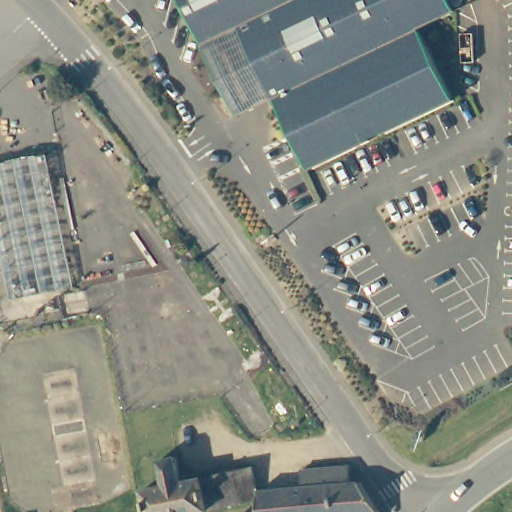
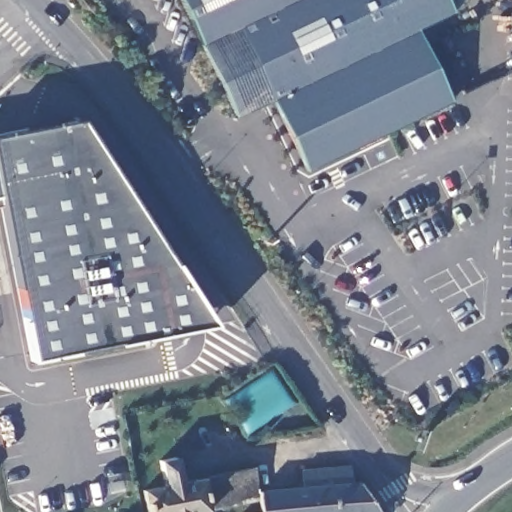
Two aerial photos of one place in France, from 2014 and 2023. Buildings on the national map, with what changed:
unchanged [(269,105),(230,121),(173,0),(443,0),(452,19),(417,37),(451,107),(300,172),(269,105)]
new [(31,360),(2,204),(0,204),(0,135),(81,120),(215,323),(31,360)]
demolished [(75,288),(13,299),(0,239),(0,164),(48,155),(75,288)]
demolished [(86,417),(89,430),(56,435),(54,423),(86,417)]
unchanged [(260,490),(261,497),(193,512),(150,512),(146,489),(161,485),(156,461),(181,455),(186,480),(256,465),(260,490)]
unchanged [(382,512),(307,512),(305,486),(304,470),(350,465),(382,512)]
unchanged [(251,512),(262,510),(261,497),(260,490),(305,486),(307,512),(251,512)]

